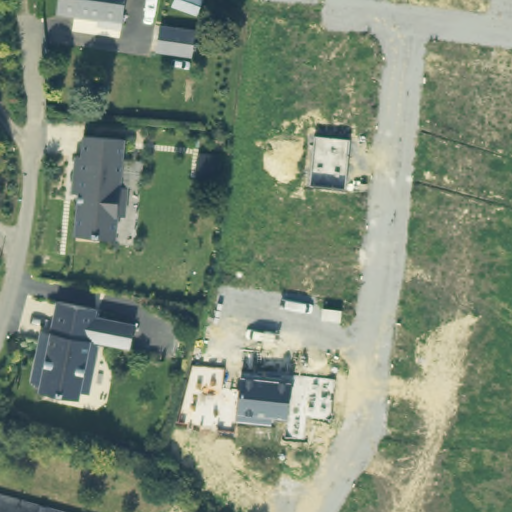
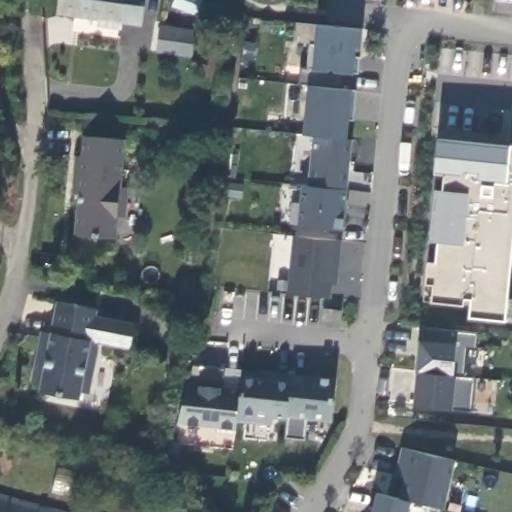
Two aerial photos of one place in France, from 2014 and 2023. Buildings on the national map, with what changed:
unchanged [(122,28),(99,25),(100,19),(58,14),(60,0),(126,0),(122,28)]
unchanged [(199,1),(197,0),(199,0),(199,1)]
new [(315,25),(363,29),(361,48),(356,47),(353,73),(312,69),(315,25)]
unchanged [(188,56),(153,52),(157,27),(192,32),(188,56)]
new [(301,183),(308,184),(313,136),(304,136),(307,85),(349,89),(343,139),(351,139),(342,230),(297,226),(301,183)]
new [(425,284),(427,262),(434,189),(442,189),(442,176),(430,175),(433,134),(510,141),(510,145),(512,145),(512,263),(507,299),(512,300),(512,321),(505,321),(469,318),(471,299),(462,298),(462,305),(432,301),(432,285),(425,284)]
unchanged [(77,194),(71,194),(74,157),(80,158),(81,137),(121,140),(117,188),(125,188),(122,217),(115,216),(113,240),(73,237),(76,204),(86,204),(87,195),(77,194)]
new [(292,236),(339,240),(333,299),(288,295),(292,236)]
unchanged [(89,394),(80,392),(79,400),(40,393),(41,385),(31,383),(40,339),(50,341),(57,302),(97,310),(95,317),(134,324),(130,349),(99,343),(89,394)]
new [(418,341),(422,330),(476,335),(475,351),(465,350),(461,377),(416,373),(418,341)]
unchanged [(307,421),(304,441),(285,440),(288,419),(272,417),(271,424),(238,422),(237,430),(177,425),(187,383),(191,366),(227,368),(222,386),(238,389),(240,371),(257,373),(257,371),(335,379),(331,422),(307,421)]
new [(416,373),(457,376),(475,378),(472,412),(452,411),(413,408),(416,373)]
new [(401,499),(405,480),(396,478),(402,449),(455,461),(445,509),(401,499)]
new [(401,499),(411,501),(408,512),(373,512),(377,494),(401,499)]
unchanged [(52,512),(0,512),(0,501),(52,512)]

